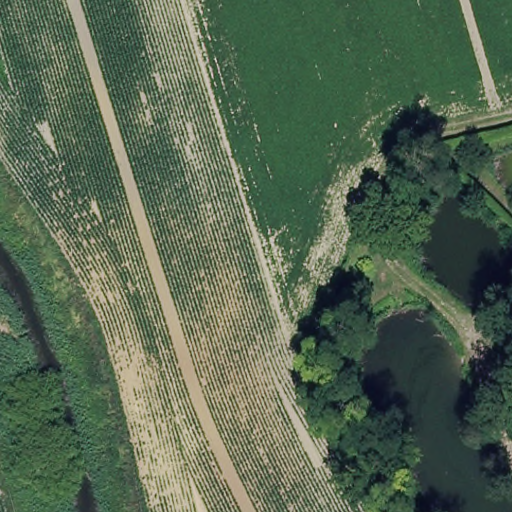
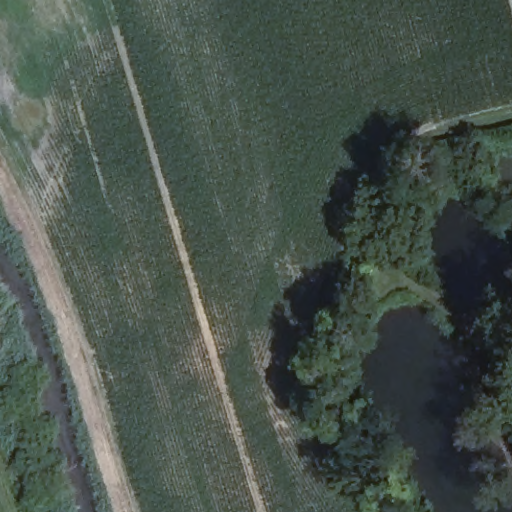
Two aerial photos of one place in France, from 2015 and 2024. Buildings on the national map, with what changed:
[]

